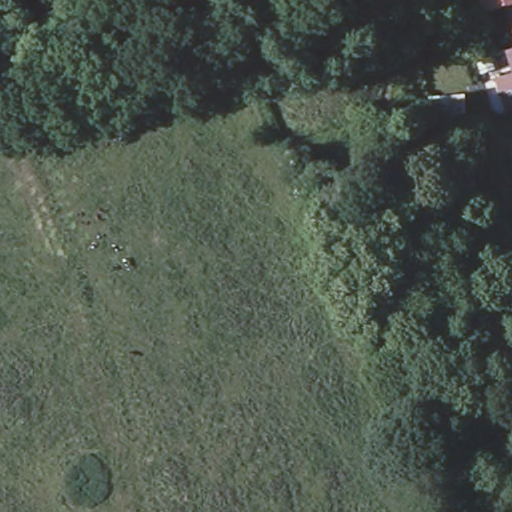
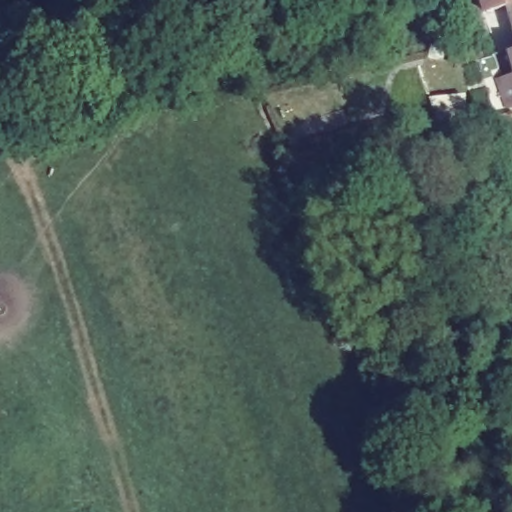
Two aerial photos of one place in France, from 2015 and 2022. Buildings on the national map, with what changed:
unchanged [(512,0),(512,35),(502,0),(512,0)]
unchanged [(496,80),(487,55),(512,48),(512,74),(496,80)]
unchanged [(512,74),(512,104),(504,107),(494,81),(496,80),(512,74)]

